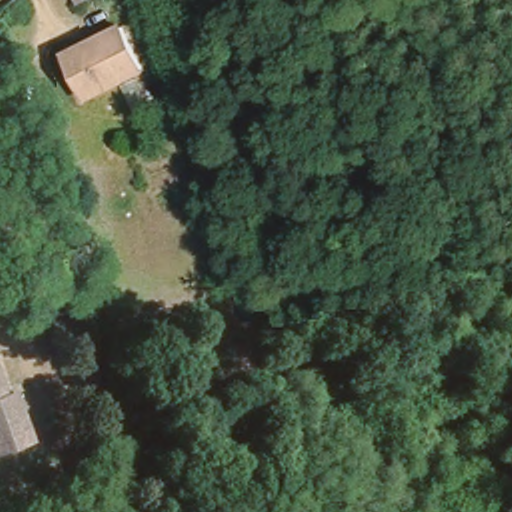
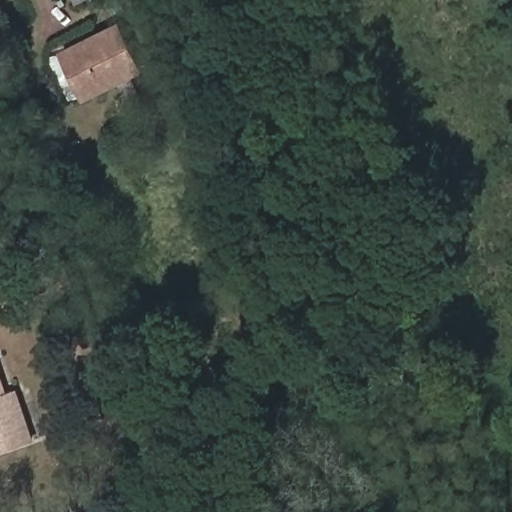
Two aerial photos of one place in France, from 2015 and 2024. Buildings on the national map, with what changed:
unchanged [(106,0),(91,5),(89,0),(105,0),(106,0)]
unchanged [(116,26),(136,70),(83,94),(62,51),(116,26)]
unchanged [(5,392),(13,389),(29,430),(0,440),(0,380),(5,392)]

